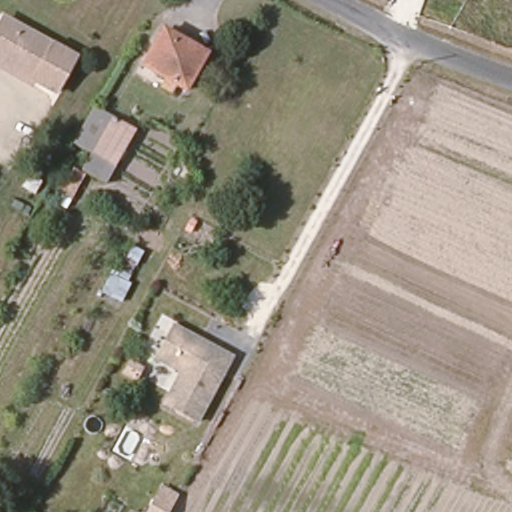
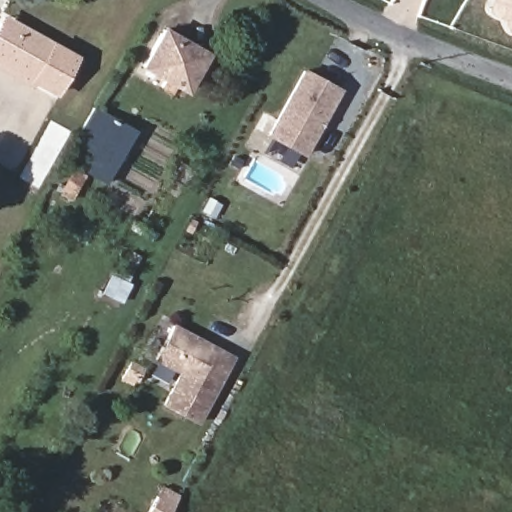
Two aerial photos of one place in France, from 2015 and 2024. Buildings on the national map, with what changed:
new [(512,0),(512,33),(510,32),(507,30),(503,25),(503,18),(491,14),(488,12),(487,7),(490,0),(512,0)]
unchanged [(55,89),(0,59),(0,23),(32,41),(36,35),(72,56),(55,89)]
unchanged [(206,53),(187,90),(145,66),(165,30),(206,53)]
new [(305,158),(266,137),(302,68),(342,89),(305,158)]
unchanged [(95,109),(105,114),(138,134),(120,165),(88,147),(77,140),(95,109)]
unchanged [(229,359),(195,423),(162,406),(179,375),(152,361),(170,327),(229,359)]

